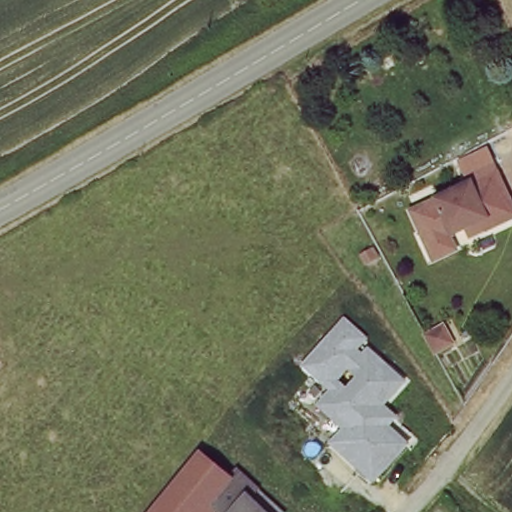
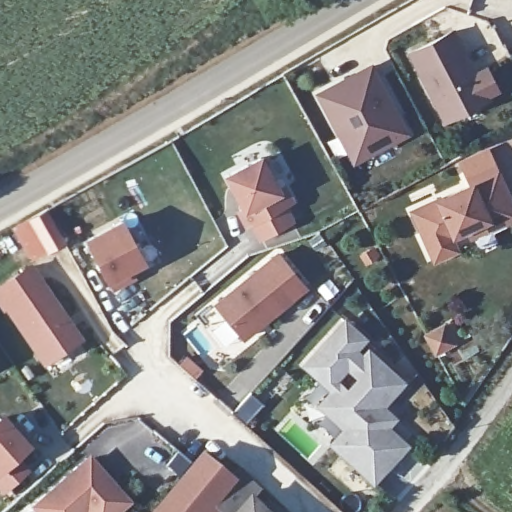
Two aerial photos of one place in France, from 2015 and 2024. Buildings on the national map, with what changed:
new [(446,26),(470,70),(480,64),(492,83),(480,90),(482,92),(440,115),(405,49),(446,26)]
new [(352,164),(313,92),(371,62),(409,133),(352,164)]
new [(275,188),(282,185),(288,198),(281,203),(288,218),(258,235),(250,219),(245,222),(237,208),(242,205),(226,173),(259,156),(275,188)]
unchanged [(437,262),(432,253),(413,214),(472,186),(463,167),(490,156),(512,204),(512,221),(497,228),(487,227),(485,223),(452,239),(453,242),(458,251),(437,262)]
new [(140,258),(128,266),(132,274),(112,285),(86,238),(120,219),(140,258)]
new [(302,284),(242,335),(216,302),(276,252),(302,284)]
new [(44,360),(7,303),(3,305),(0,299),(0,284),(30,264),(78,336),(44,360)]
unchanged [(369,338),(359,350),(362,353),(368,346),(407,382),(387,407),(398,418),(391,427),(410,445),(373,484),(328,444),(340,429),(317,405),(328,390),(303,366),(345,316),(369,338)]
unchanged [(441,322),(451,339),(435,349),(430,341),(425,331),(441,322)]
new [(13,454),(25,467),(2,486),(0,483),(0,417),(24,443),(13,454)]
unchanged [(290,512),(221,512),(213,505),(207,512),(156,512),(208,452),(234,477),(241,469),(290,512)]
new [(125,500),(112,512),(85,512),(83,510),(82,512),(38,512),(32,505),(87,456),(125,500)]

